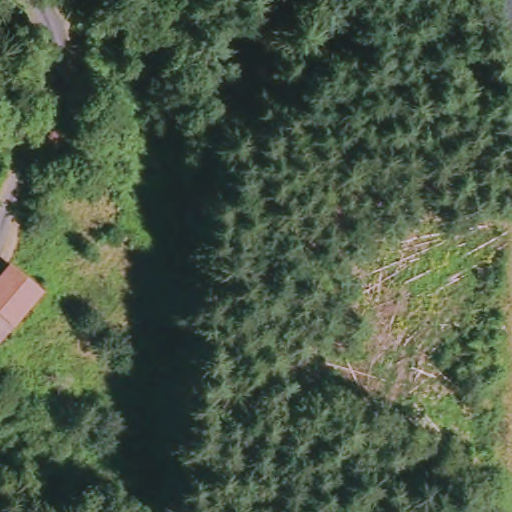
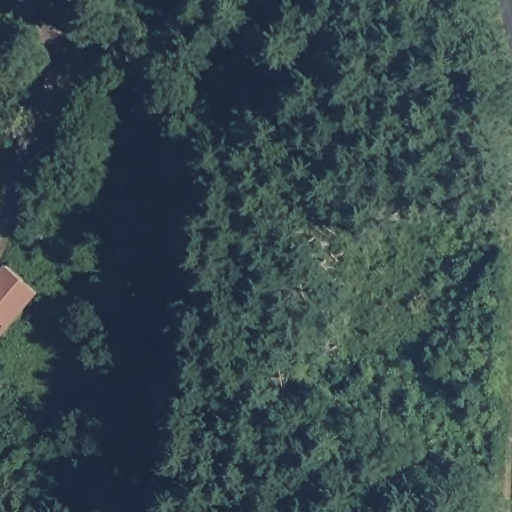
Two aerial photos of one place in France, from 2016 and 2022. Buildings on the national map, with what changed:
unchanged [(70,166),(58,199),(26,187),(42,155),(70,166)]
unchanged [(43,293),(0,346),(0,286),(15,269),(43,293)]

